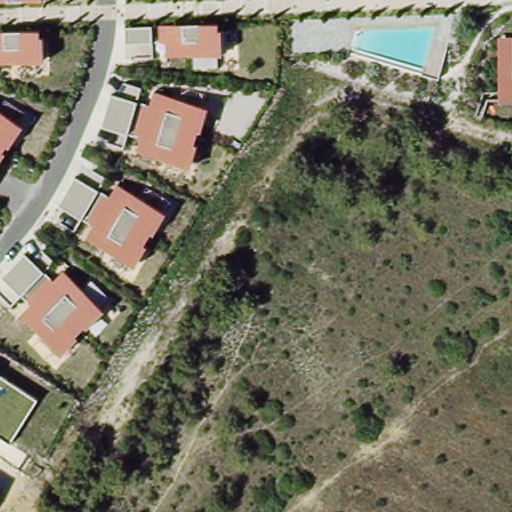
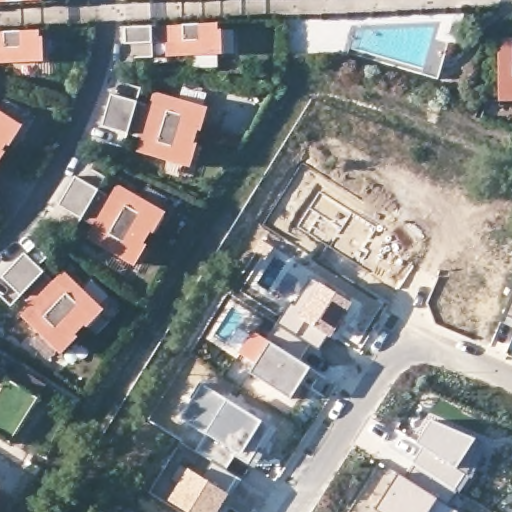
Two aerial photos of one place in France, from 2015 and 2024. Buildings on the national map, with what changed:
unchanged [(0,5),(0,0),(49,0),(49,3),(0,5)]
unchanged [(222,54),(165,56),(165,46),(123,47),(123,29),(219,24),(222,54)]
unchanged [(0,64),(0,34),(42,31),(44,62),(0,64)]
unchanged [(496,104),(494,42),(512,42),(512,49),(512,104),(496,104)]
unchanged [(191,169),(133,151),(139,138),(102,128),(111,96),(149,106),(152,94),(208,106),(191,169)]
unchanged [(0,108),(28,123),(0,166),(0,108)]
unchanged [(136,269),(85,239),(92,227),(58,208),(75,179),(109,197),(115,184),(167,213),(136,269)]
new [(377,229),(365,248),(369,250),(359,264),(297,227),(320,193),(377,229)]
unchanged [(19,316),(29,307),(0,278),(0,277),(24,253),(54,281),(64,271),(105,311),(61,356),(19,316)]
new [(252,329),(267,338),(277,322),(312,277),(338,292),(315,328),(328,337),(319,349),(312,345),(302,360),(311,367),(290,399),(248,373),(254,364),(237,353),(252,329)]
new [(500,323),(512,297),(512,327),(500,323)]
new [(163,498),(187,465),(202,474),(211,461),(192,451),(202,435),(176,419),(200,381),(263,421),(249,444),(258,450),(249,465),(235,457),(226,470),(238,477),(229,493),(218,512),(185,512),(163,498)]
new [(420,447),(415,444),(429,417),(475,438),(457,467),(466,473),(455,492),(412,464),(420,447)]
new [(373,509),(398,472),(458,512),(377,512),(373,509)]
unchanged [(0,487),(0,486),(1,487),(0,487)]

